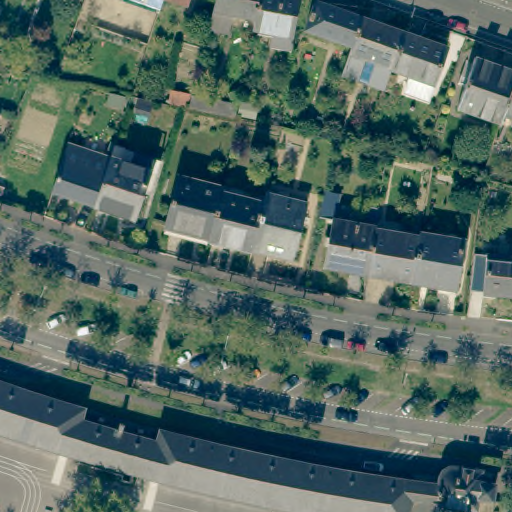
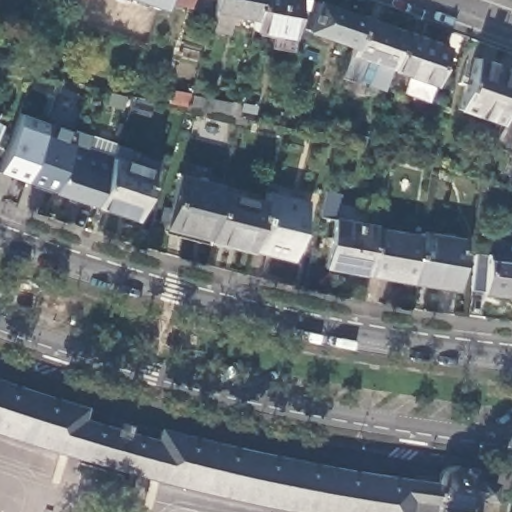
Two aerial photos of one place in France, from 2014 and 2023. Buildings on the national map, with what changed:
unchanged [(149,0),(162,0),(161,4),(149,0)]
unchanged [(258,0),(255,14),(232,9),(230,28),(209,24),(214,0),(258,0)]
unchanged [(298,0),(293,33),(252,25),(255,14),(258,0),(298,0)]
unchanged [(308,0),(332,0),(357,9),(347,36),(301,20),(308,0)]
unchanged [(347,36),(357,9),(399,24),(387,59),(344,44),(347,36)]
unchanged [(400,83),(405,66),(387,60),(387,59),(399,24),(442,38),(429,74),(423,90),(400,83)]
unchanged [(8,64),(0,62),(0,51),(12,54),(8,64)]
unchanged [(457,104),(475,53),(512,66),(512,84),(502,110),(500,119),(457,104)]
unchanged [(512,84),(512,114),(502,110),(512,84)]
unchanged [(237,105),(235,116),(189,108),(192,97),(237,105)]
new [(72,131),(90,136),(86,150),(67,144),(52,192),(0,175),(0,160),(17,114),(72,131)]
unchanged [(67,144),(110,158),(94,205),(52,192),(67,144)]
unchanged [(135,151),(155,159),(152,170),(136,219),(94,205),(110,158),(131,164),(135,151)]
unchanged [(221,191),(209,238),(165,227),(179,174),(222,184),(221,191)]
unchanged [(221,191),(264,203),(252,249),(209,238),(221,191)]
unchanged [(306,202),(292,255),(290,259),(252,249),(264,203),(267,191),(306,202)]
unchanged [(369,224),(362,269),(320,262),(328,214),(370,222),(369,224)]
unchanged [(369,224),(413,231),(406,277),(362,269),(369,224)]
unchanged [(461,236),(452,285),(406,277),(413,231),(413,228),(461,236)]
unchanged [(500,285),(500,289),(479,288),(482,249),(512,252),(512,286),(500,285)]
unchanged [(106,414),(172,434),(254,453),(302,463),(414,483),(416,484),(438,486),(439,479),(442,472),(448,468),(452,468),(481,471),(480,478),(488,479),(488,484),(495,485),(492,499),(477,498),(475,509),(437,503),(435,512),(313,512),(302,510),(187,484),(136,472),(37,441),(0,428),(0,380),(50,398),(106,414)]
unchanged [(512,508),(512,512),(507,512),(507,507),(512,508)]

